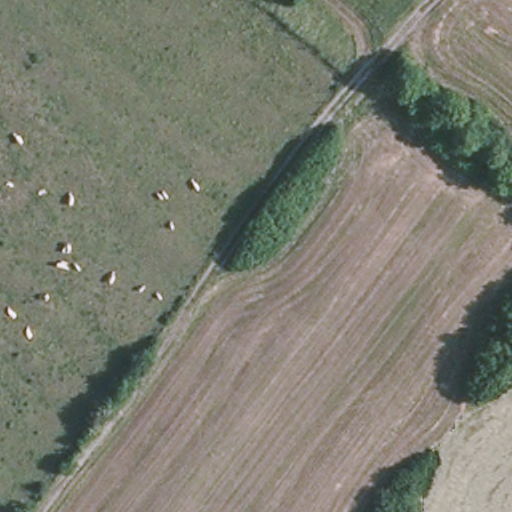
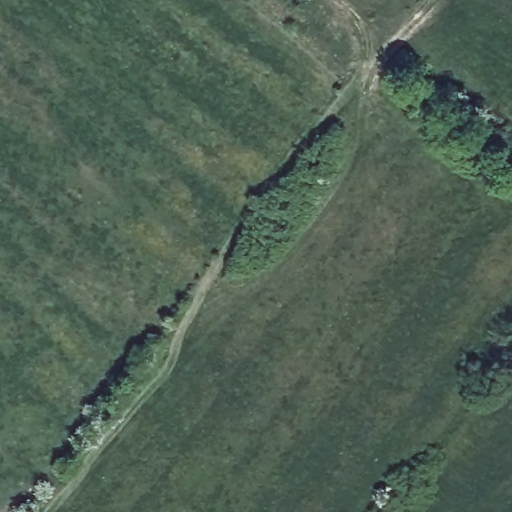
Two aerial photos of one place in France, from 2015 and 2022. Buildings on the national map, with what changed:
[]

